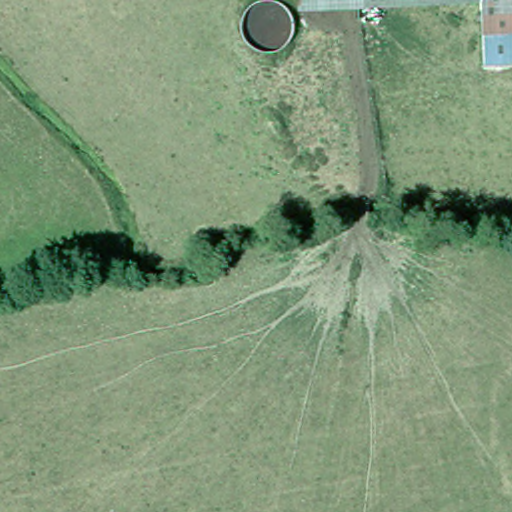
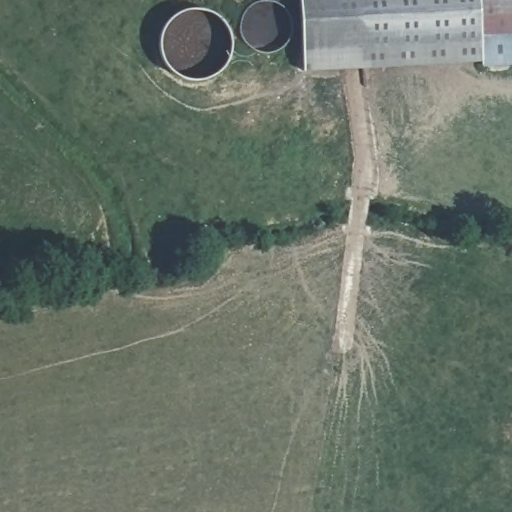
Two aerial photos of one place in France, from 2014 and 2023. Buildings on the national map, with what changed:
new [(299,0),(361,0),(361,8),(473,1),(477,62),(302,70),(299,0)]
unchanged [(361,8),(361,0),(473,0),(473,1),(361,8)]
unchanged [(475,29),(474,0),(512,0),(512,60),(477,62),(475,29)]

